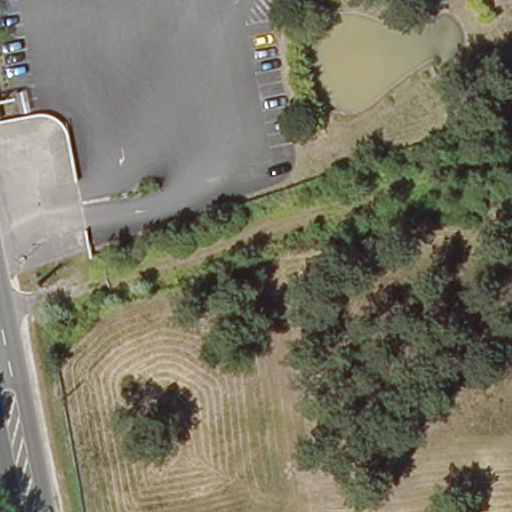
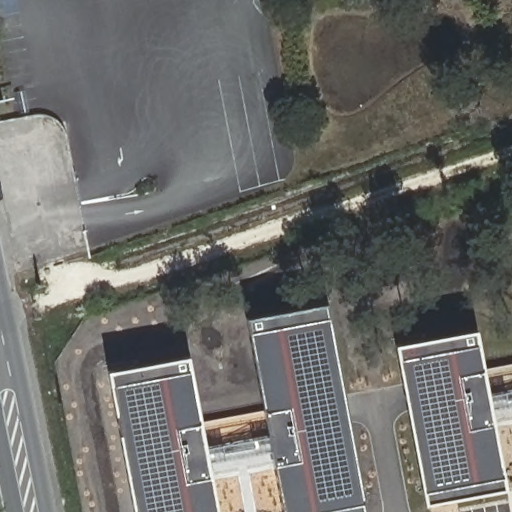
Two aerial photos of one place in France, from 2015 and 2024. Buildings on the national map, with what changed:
new [(190,355),(201,422),(264,411),(247,318),(326,304),(366,512),(281,512),(273,466),(211,477),(218,512),(135,512),(106,370),(190,355)]
new [(476,330),(485,367),(512,363),(512,421),(494,424),(506,488),(424,503),(396,345),(476,330)]

